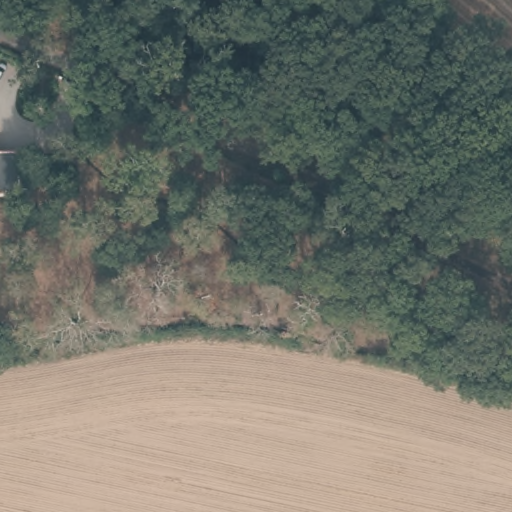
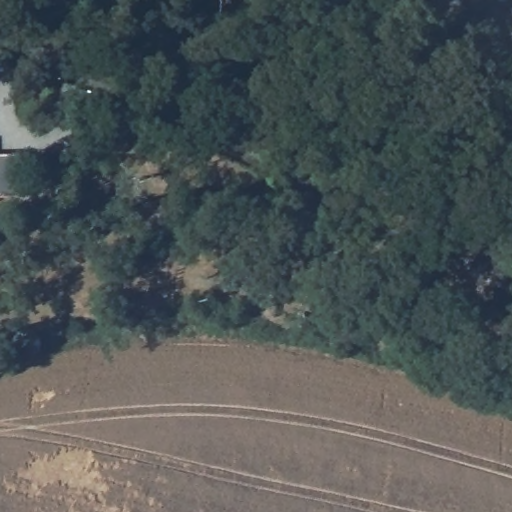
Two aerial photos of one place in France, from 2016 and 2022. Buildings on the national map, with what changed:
unchanged [(22,198),(0,200),(0,156),(20,154),(22,198)]

